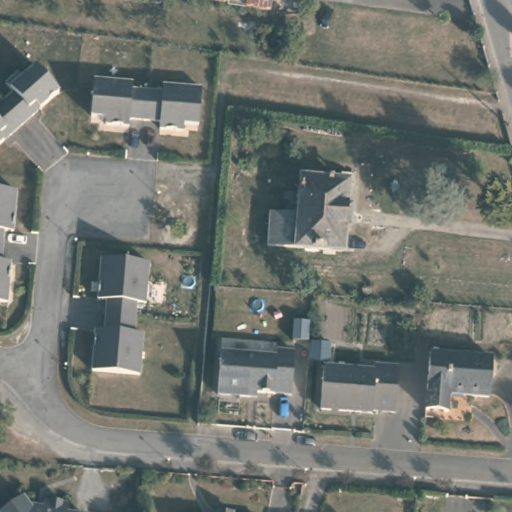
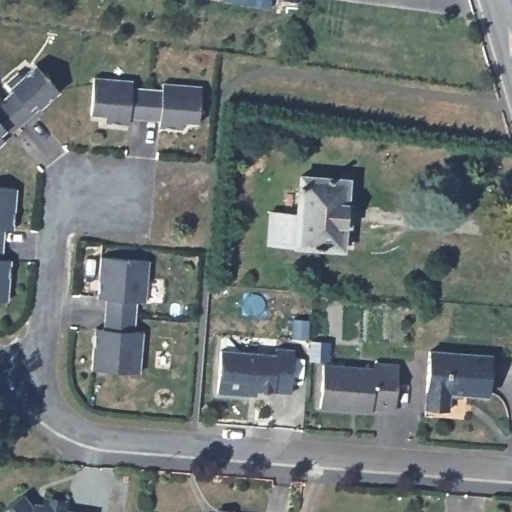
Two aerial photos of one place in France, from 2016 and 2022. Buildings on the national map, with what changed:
unchanged [(20,121),(1,100),(12,90),(5,80),(17,71),(21,75),(36,62),(58,90),(32,111),(20,121)]
unchanged [(131,115),(131,124),(107,121),(108,114),(94,112),(97,76),(135,79),(134,86),(149,87),(146,116),(131,115)]
unchanged [(186,120),(185,128),(160,125),(161,118),(146,116),(149,87),(162,89),(162,80),(202,84),(200,121),(186,120)]
unchanged [(8,131),(0,139),(0,101),(1,100),(20,121),(8,131)]
unchanged [(258,237),(260,222),(271,223),(272,206),(300,209),(303,171),(342,174),(343,166),(357,168),(357,177),(352,177),(345,245),(258,237)]
unchanged [(7,226),(7,240),(0,240),(0,185),(19,187),(16,227),(7,226)]
unchanged [(11,298),(0,297),(0,240),(7,240),(6,256),(14,257),(11,298)]
unchanged [(140,295),(139,312),(108,310),(109,295),(102,294),(105,254),(151,257),(148,296),(140,295)]
unchanged [(137,327),(146,328),(142,370),(96,366),(99,325),(107,325),(108,310),(139,312),(137,327)]
unchanged [(289,385),(249,382),(248,387),(216,385),(219,342),(273,346),(274,340),(292,342),(289,385)]
unchanged [(492,351),(488,390),(449,387),(447,405),(425,402),(430,345),(492,351)]
unchanged [(378,366),(378,359),(401,361),(398,406),(375,405),(375,409),(324,405),(327,362),(378,366)]
unchanged [(22,497),(31,509),(42,511),(44,499),(68,503),(67,512),(2,512),(22,497)]
unchanged [(215,503),(232,505),(231,511),(244,512),(213,512),(215,503)]

